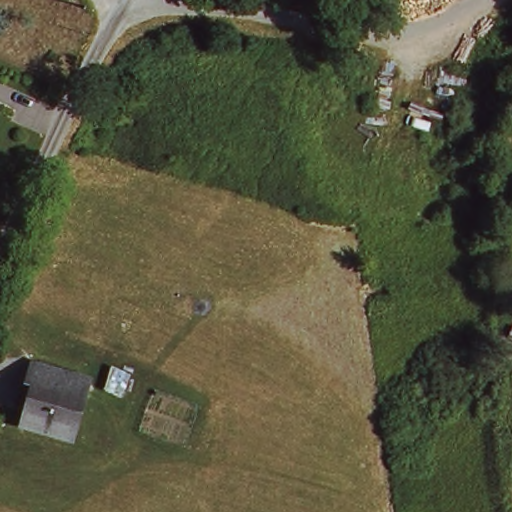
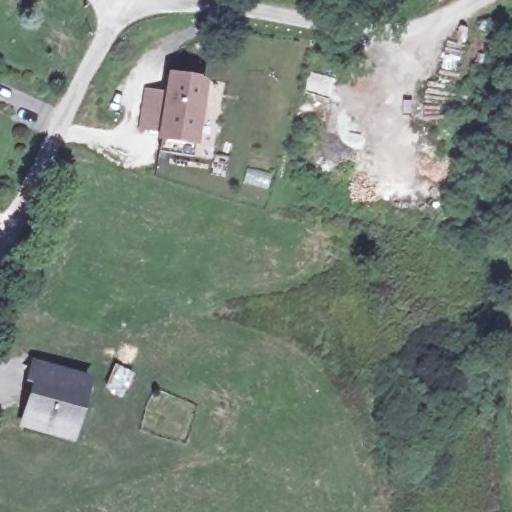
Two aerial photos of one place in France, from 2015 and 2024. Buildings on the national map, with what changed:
new [(208,77),(198,146),(194,145),(192,157),(159,153),(160,140),(158,140),(158,133),(139,130),(144,87),(165,90),(168,71),(208,77)]
unchanged [(81,377),(68,431),(23,418),(31,383),(23,380),(28,363),(81,377)]

